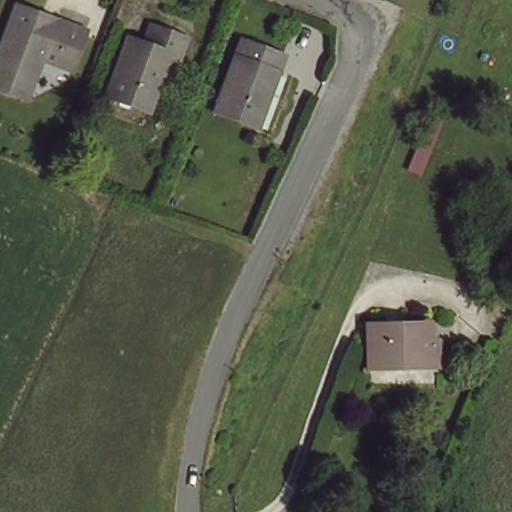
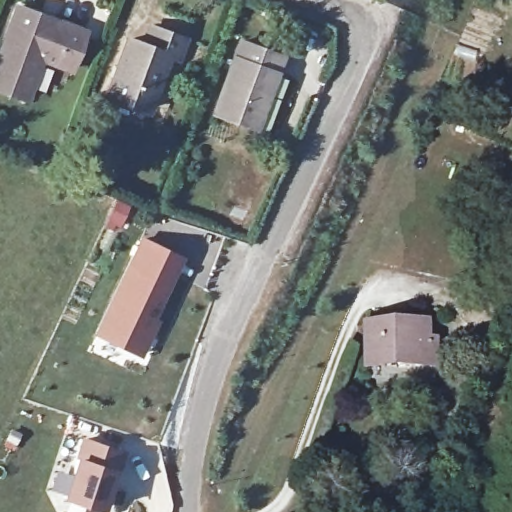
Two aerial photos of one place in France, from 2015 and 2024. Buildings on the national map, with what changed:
unchanged [(0,90),(0,50),(15,10),(84,37),(70,73),(56,67),(39,61),(24,100),(0,90)]
unchanged [(176,42),(167,62),(160,59),(140,111),(100,96),(120,43),(136,50),(144,29),(176,42)]
unchanged [(280,59),(252,127),(212,111),(239,42),(280,59)]
new [(152,318),(157,321),(140,357),(92,335),(139,237),(182,257),(152,318)]
unchanged [(365,356),(364,323),(419,322),(420,338),(434,338),(435,365),(420,365),(395,366),(365,367),(365,356)]
new [(110,492),(107,490),(100,511),(60,498),(74,457),(80,437),(122,452),(110,492)]

